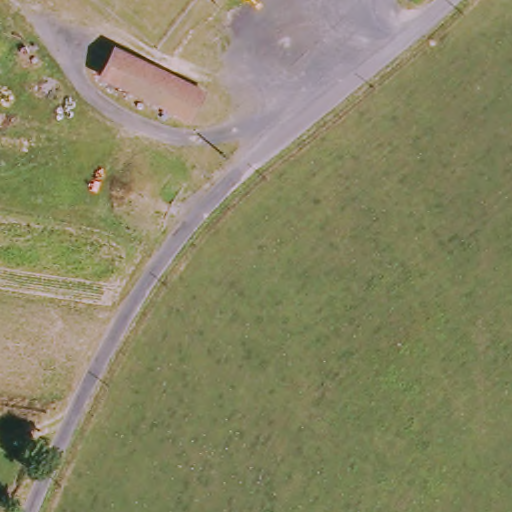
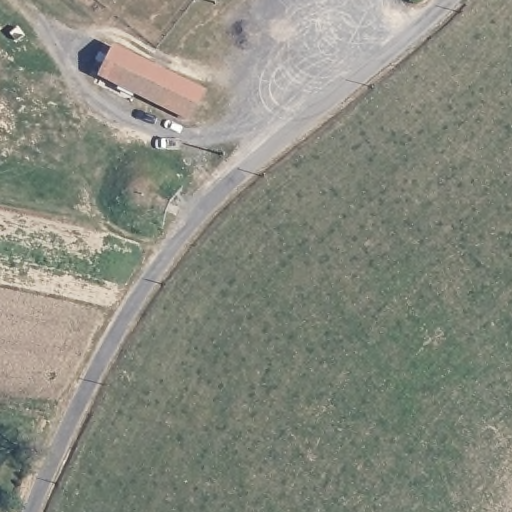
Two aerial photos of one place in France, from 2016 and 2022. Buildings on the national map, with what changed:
unchanged [(198,124),(108,81),(122,51),(213,97),(198,124)]

